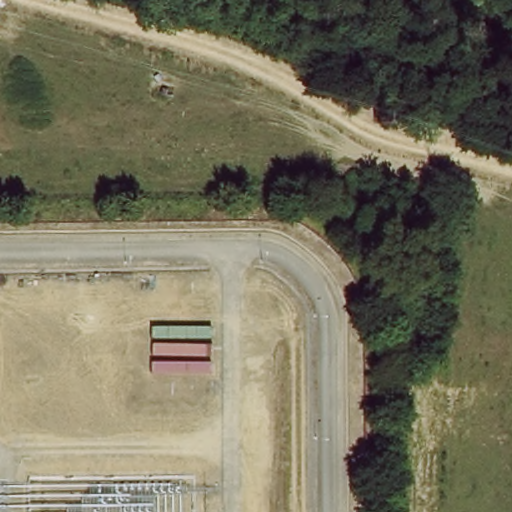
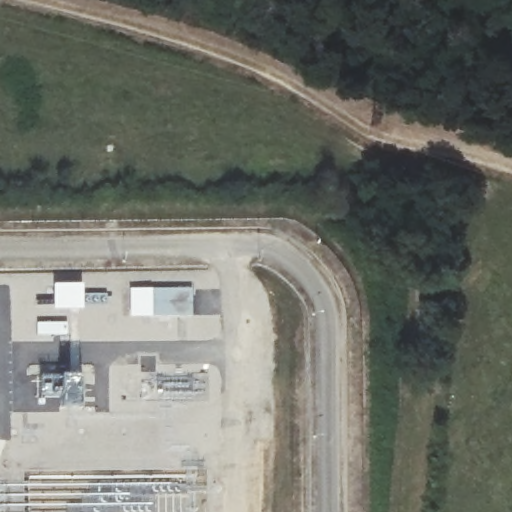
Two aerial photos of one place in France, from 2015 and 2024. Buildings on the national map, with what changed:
new [(130,289),(194,289),(194,318),(130,318),(130,289)]

